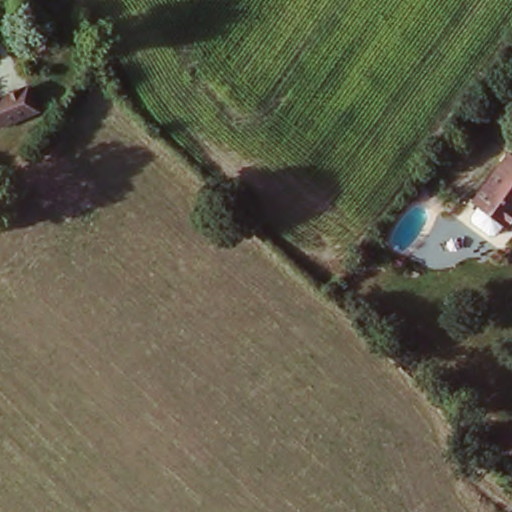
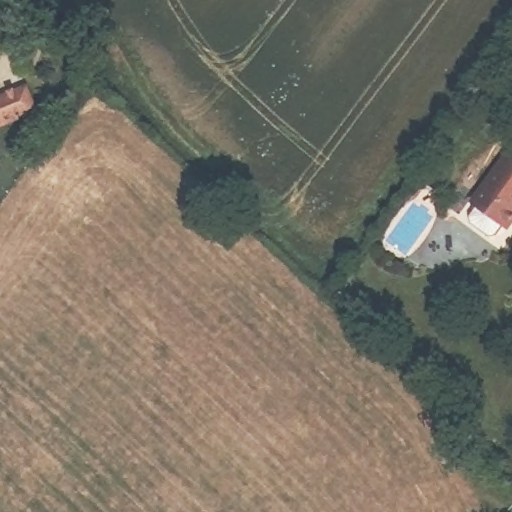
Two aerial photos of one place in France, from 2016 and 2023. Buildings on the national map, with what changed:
unchanged [(32,106),(0,124),(0,94),(20,84),(32,106)]
unchanged [(507,230),(473,206),(508,155),(512,158),(512,222),(507,230)]

